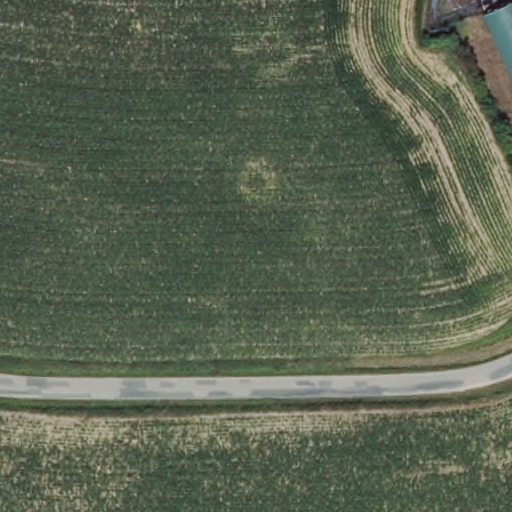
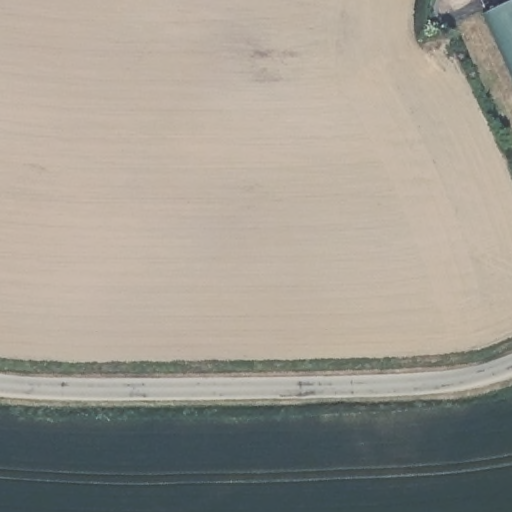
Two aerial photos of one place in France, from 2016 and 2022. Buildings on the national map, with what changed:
unchanged [(512,0),(512,69),(485,12),(512,0)]

